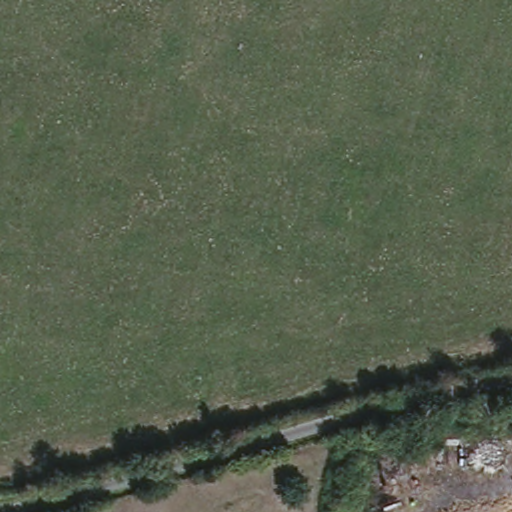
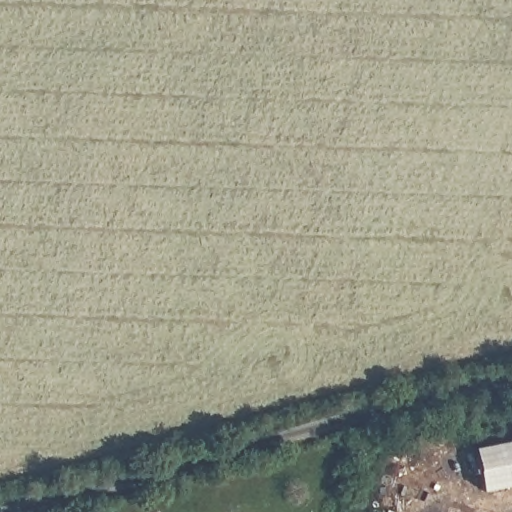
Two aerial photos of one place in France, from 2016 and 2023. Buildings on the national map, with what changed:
new [(512,440),(512,498),(477,501),(475,440),(512,440)]

